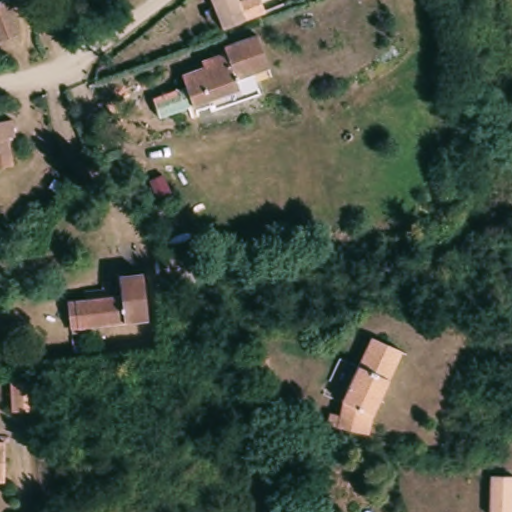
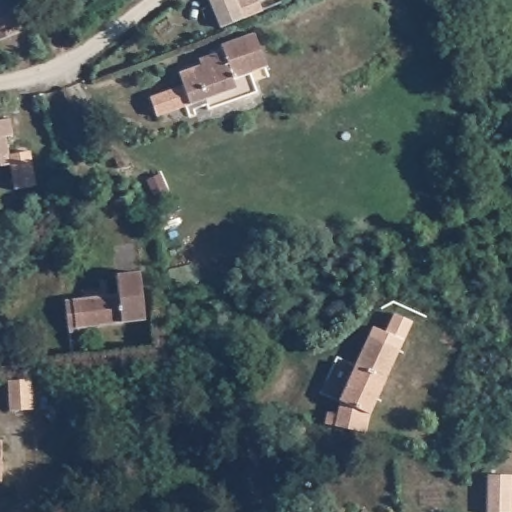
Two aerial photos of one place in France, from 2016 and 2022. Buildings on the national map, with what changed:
unchanged [(1,41),(0,40),(0,1),(1,0),(11,0),(24,32),(1,41)]
unchanged [(242,12),(244,17),(221,27),(209,0),(249,0),(252,7),(242,12)]
unchanged [(257,87),(208,104),(205,94),(157,111),(150,92),(182,80),(179,69),(201,61),(199,55),(223,46),(221,40),(254,29),(266,62),(250,67),(252,73),(257,87)]
unchanged [(12,130),(6,131),(11,160),(0,161),(0,114),(10,112),(12,130)]
unchanged [(333,230),(333,245),(302,244),(303,228),(333,230)]
unchanged [(146,314),(98,320),(68,322),(65,295),(83,293),(110,290),(119,289),(117,270),(140,267),(146,314)]
unchanged [(372,416),(369,433),(327,424),(330,412),(340,414),(343,401),(342,401),(375,338),(405,353),(372,416)]
unchanged [(272,379),(244,380),(244,377),(243,357),(271,357),(272,379)]
unchanged [(8,381),(32,379),(33,410),(10,411),(8,381)]
unchanged [(2,436),(2,476),(0,476),(0,436),(2,436)]
unchanged [(512,512),(486,512),(486,475),(512,473),(512,512)]

